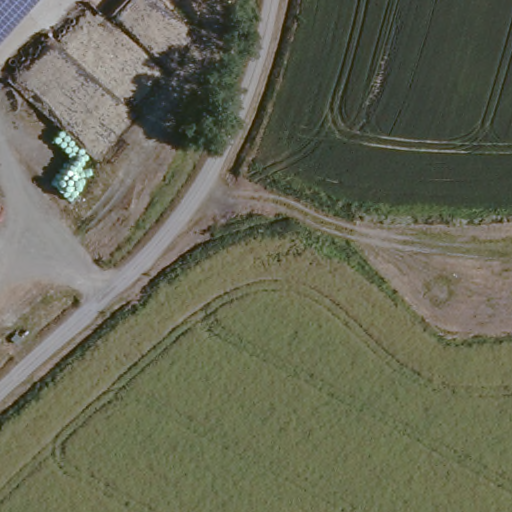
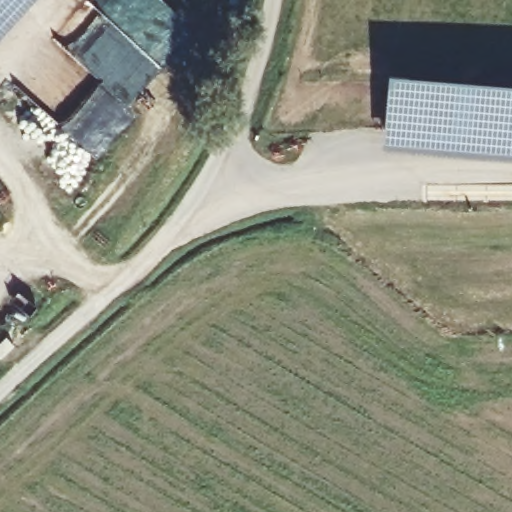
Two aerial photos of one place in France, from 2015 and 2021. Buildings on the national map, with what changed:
unchanged [(0,0),(37,0),(0,41),(0,0)]
new [(388,80),(512,89),(512,139),(385,130),(388,80)]

